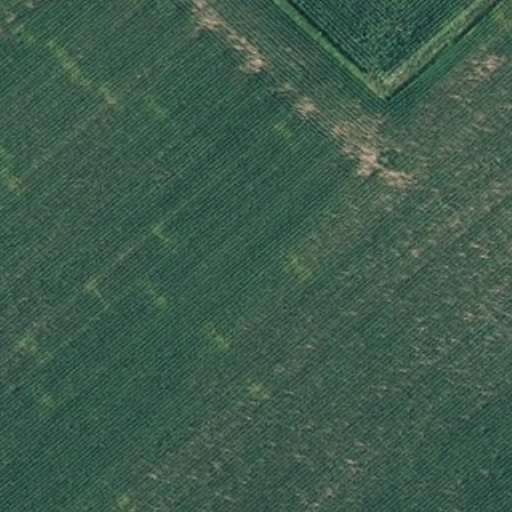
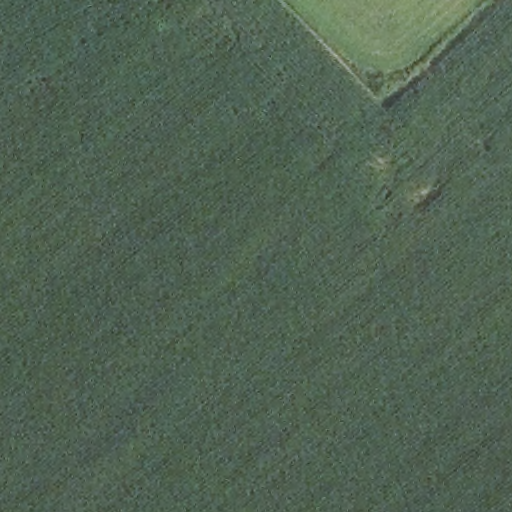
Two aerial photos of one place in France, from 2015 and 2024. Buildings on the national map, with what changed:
[]

